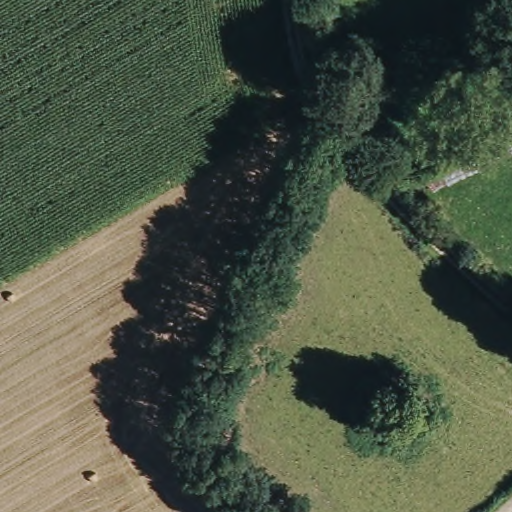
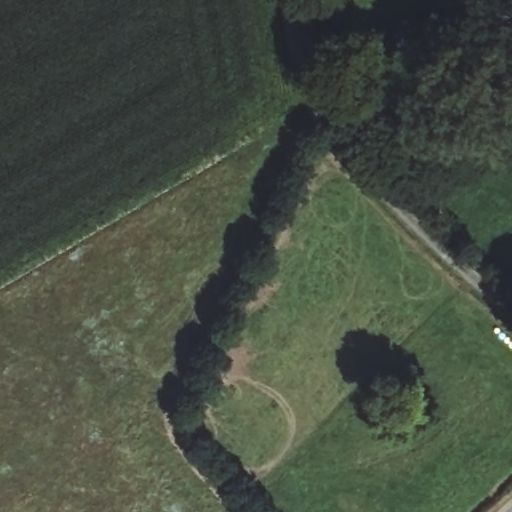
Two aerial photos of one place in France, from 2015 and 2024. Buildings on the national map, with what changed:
[]

